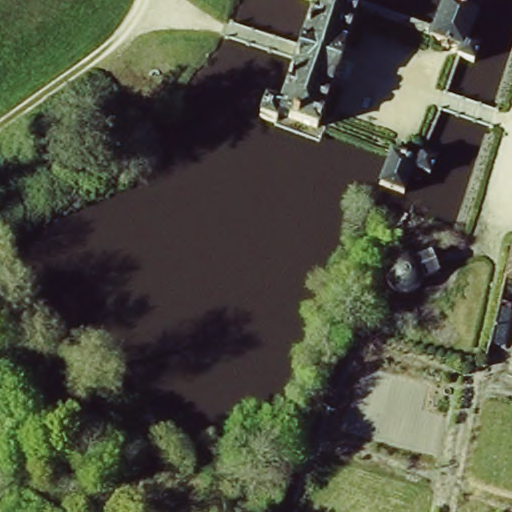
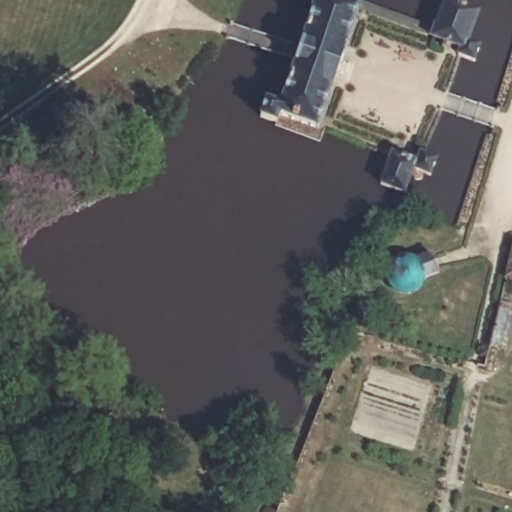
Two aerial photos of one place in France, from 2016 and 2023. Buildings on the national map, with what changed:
unchanged [(316,126),(284,112),(281,122),(258,114),(267,91),(281,94),(297,47),(313,0),(357,0),(316,126)]
unchanged [(444,0),(469,0),(480,3),(470,33),(486,38),(480,57),(459,51),(430,42),(437,20),(444,0)]
unchanged [(113,128),(97,151),(78,140),(94,116),(113,128)]
unchanged [(406,184),(379,177),(389,144),(409,151),(411,146),(425,149),(420,171),(409,168),(406,184)]
unchanged [(379,281),(376,274),(376,268),(380,259),(394,251),(402,251),(408,254),(427,252),(434,267),(422,271),(422,280),(418,286),(411,289),(400,289),(389,289),(379,281)]
unchanged [(512,252),(512,283),(506,281),(512,252)]
unchanged [(499,292),(512,295),(512,342),(490,336),(499,292)]

